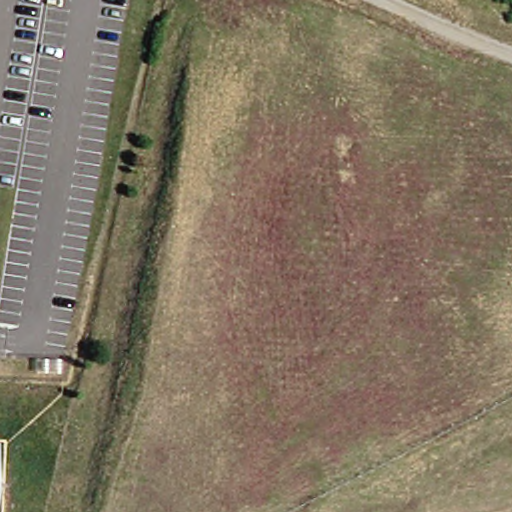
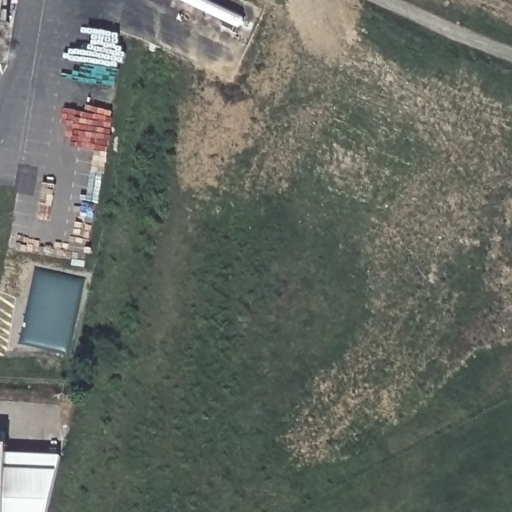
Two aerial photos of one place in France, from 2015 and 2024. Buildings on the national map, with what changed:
unchanged [(0,476),(0,438),(1,438),(0,476)]
new [(0,478),(1,452),(62,456),(48,512),(0,512),(0,478)]

